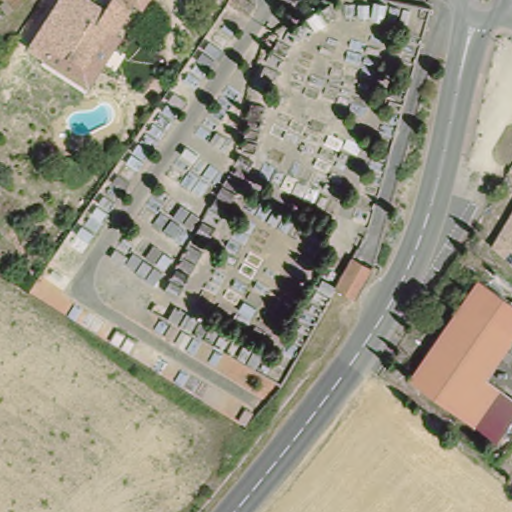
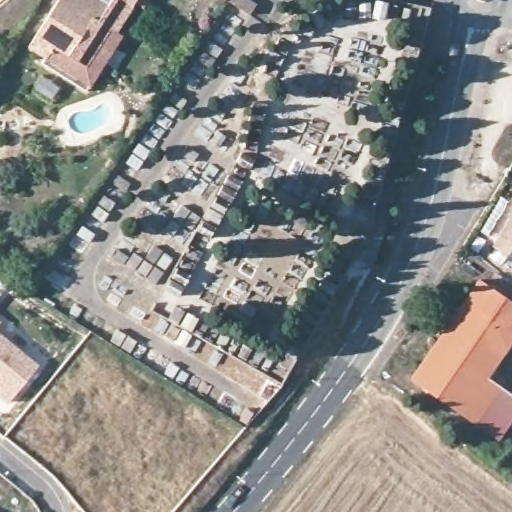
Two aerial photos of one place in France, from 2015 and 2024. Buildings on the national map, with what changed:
unchanged [(145,0),(120,36),(113,32),(88,69),(56,49),(48,59),(33,47),(65,0),(95,0),(112,11),(120,0),(145,0)]
unchanged [(253,13),(233,0),(256,0),(259,2),(253,13)]
unchanged [(512,212),(512,264),(491,246),(512,212)]
unchanged [(365,275),(349,305),(331,296),(348,266),(365,275)]
unchanged [(471,423),(457,411),(408,370),(479,285),(512,310),(512,345),(491,372),(504,385),(512,391),(512,421),(494,442),(471,423)]
new [(34,368),(3,407),(0,404),(0,341),(34,368)]

